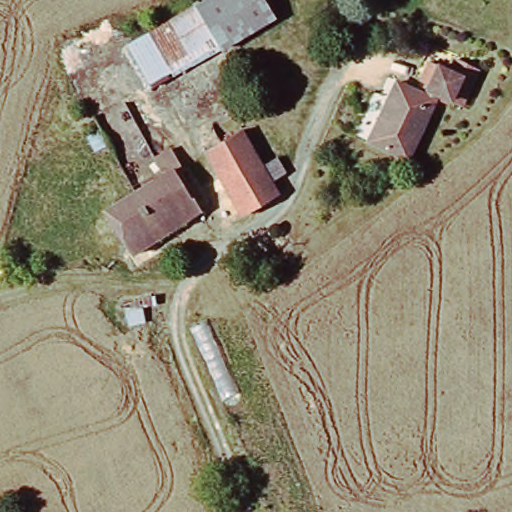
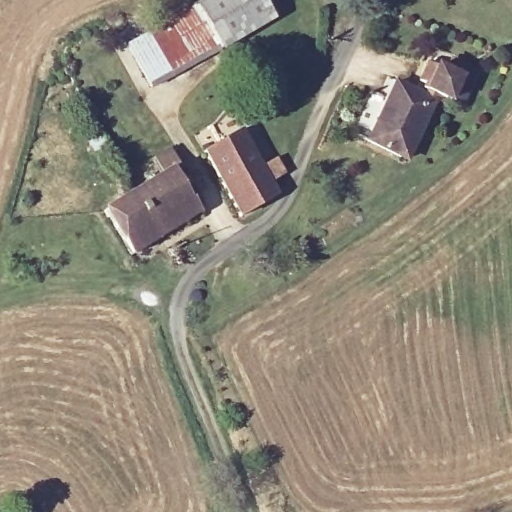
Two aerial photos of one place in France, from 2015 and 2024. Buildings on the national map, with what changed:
unchanged [(192,7),(206,0),(263,0),(275,20),(222,51),(174,81),(170,75),(148,88),(125,48),(192,7)]
unchanged [(434,56),(469,90),(479,80),(496,98),(469,125),(457,114),(454,118),(441,106),(392,160),(360,130),(408,80),(419,91),(425,84),(415,75),(434,56)]
unchanged [(258,164),(275,156),(284,173),(275,178),(268,182),(275,195),(239,218),(201,153),(221,142),(240,131),(258,164)]
unchanged [(162,175),(154,160),(172,151),(183,167),(176,172),(201,218),(133,260),(100,212),(162,175)]

